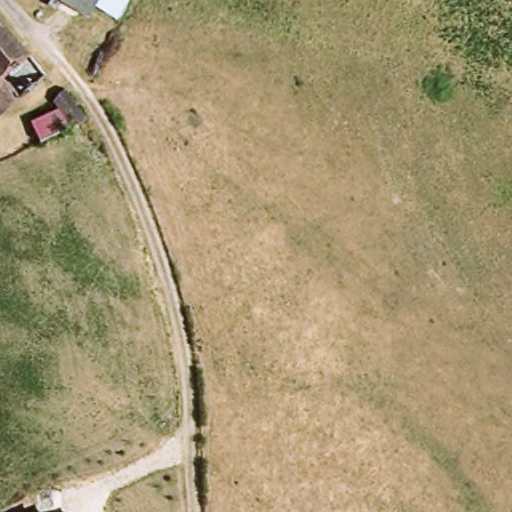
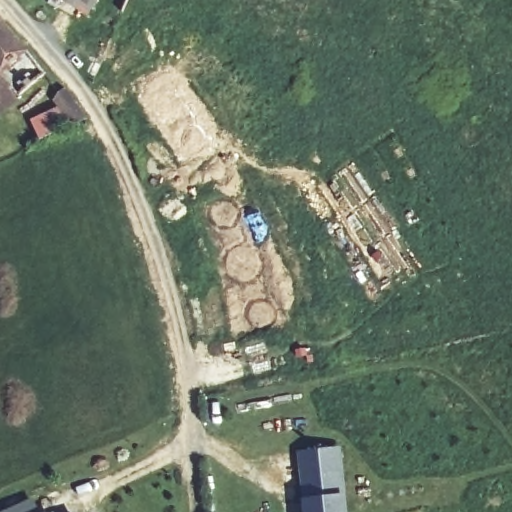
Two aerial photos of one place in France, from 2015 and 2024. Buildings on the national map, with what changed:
unchanged [(55,1),(54,0),(56,0),(55,1)]
unchanged [(83,13),(81,17),(55,1),(56,0),(89,0),(83,13)]
unchanged [(89,0),(129,0),(121,17),(100,5),(93,18),(83,13),(89,0)]
unchanged [(33,61),(6,81),(20,102),(0,116),(0,15),(33,61)]
unchanged [(69,88),(89,118),(50,139),(38,123),(63,107),(56,97),(69,88)]
new [(339,449),(345,512),(306,512),(301,454),(339,449)]
new [(5,512),(33,500),(38,512),(5,512)]
unchanged [(54,512),(49,512),(53,510),(54,512)]

